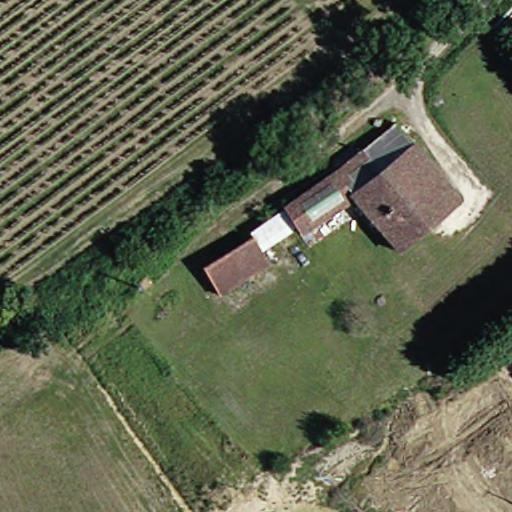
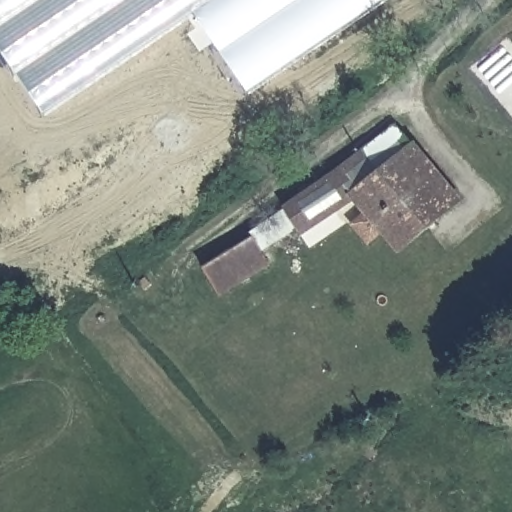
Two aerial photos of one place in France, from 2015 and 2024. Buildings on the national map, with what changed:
new [(195,16),(46,118),(0,50),(0,0),(388,0),(250,95),(195,16)]
unchanged [(459,201),(399,251),(356,199),(301,235),(297,229),(283,209),(396,126),(459,201)]
unchanged [(224,295),(208,268),(256,237),(273,265),(224,295)]

